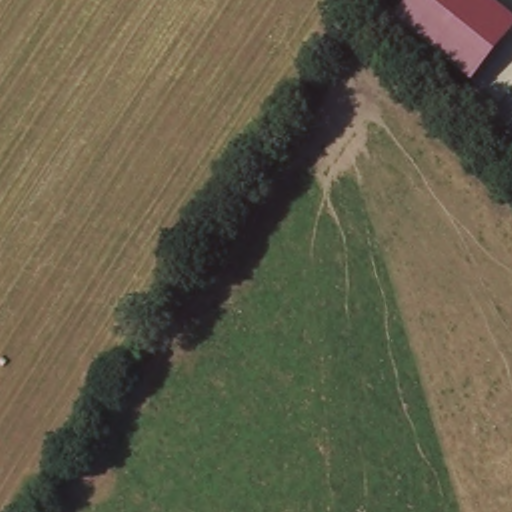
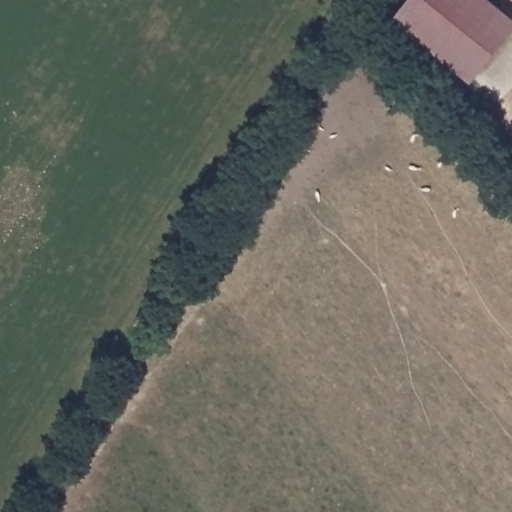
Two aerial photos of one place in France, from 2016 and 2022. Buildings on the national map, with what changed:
unchanged [(394,20),(411,0),(489,0),(512,19),(512,35),(472,84),(394,20)]

